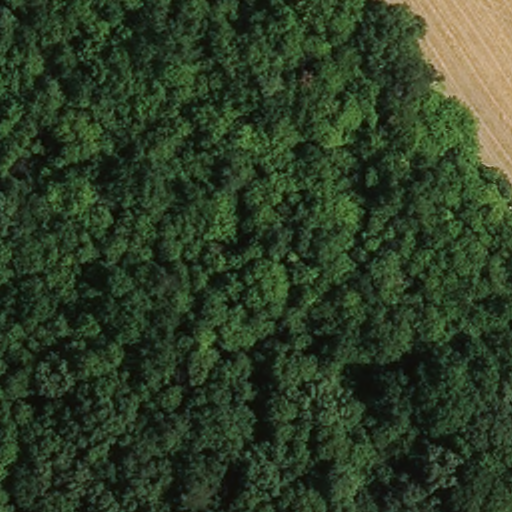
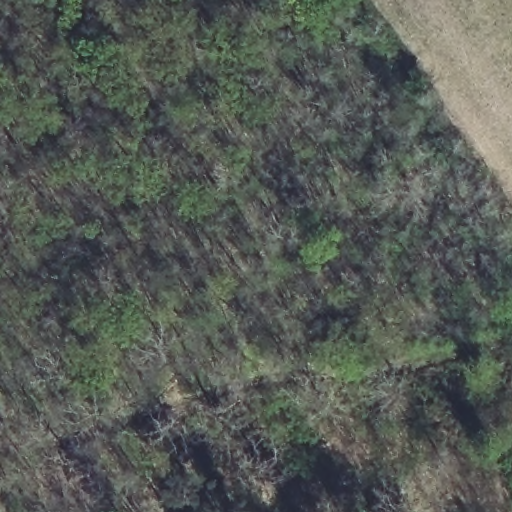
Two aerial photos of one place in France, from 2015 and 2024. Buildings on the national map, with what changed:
unchanged [(211,211),(226,218),(217,233),(203,226),(211,211)]

